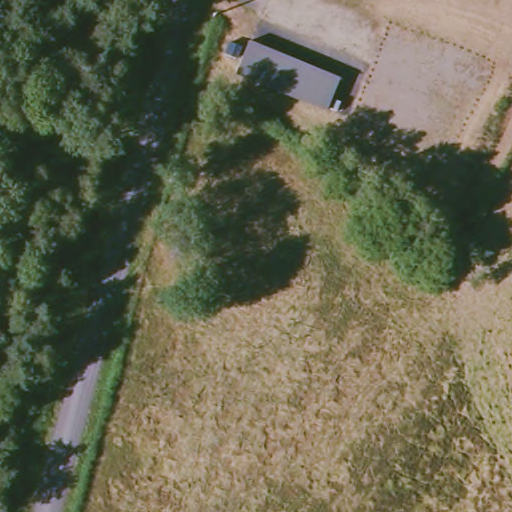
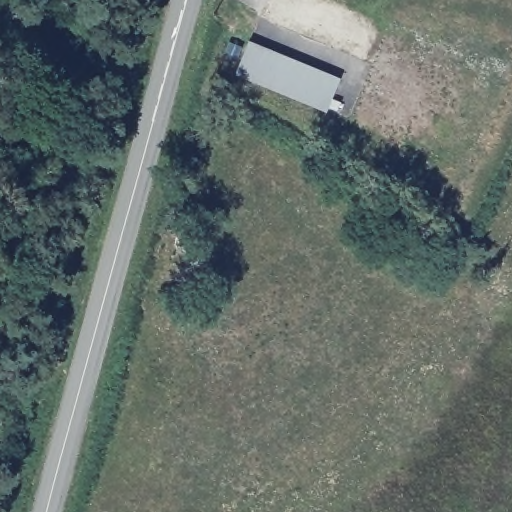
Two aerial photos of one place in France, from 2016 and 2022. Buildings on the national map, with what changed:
unchanged [(342,78),(329,110),(241,71),(253,39),(342,78)]

